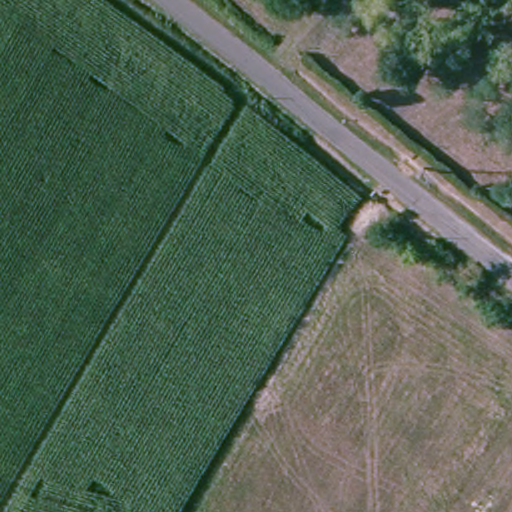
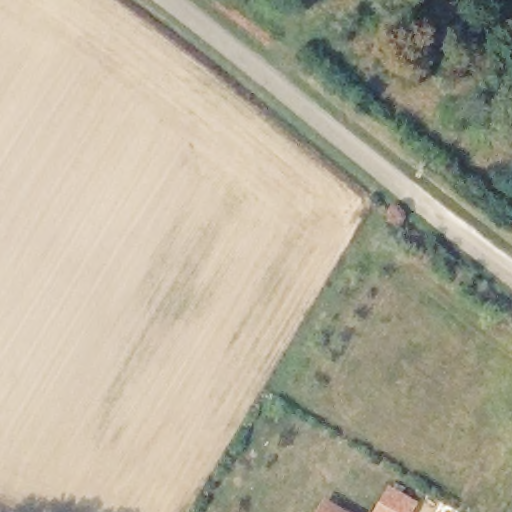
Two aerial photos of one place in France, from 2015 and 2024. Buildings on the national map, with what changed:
new [(390,485),(419,503),(413,512),(374,512),(390,485)]
new [(347,512),(316,512),(324,499),(347,512)]

